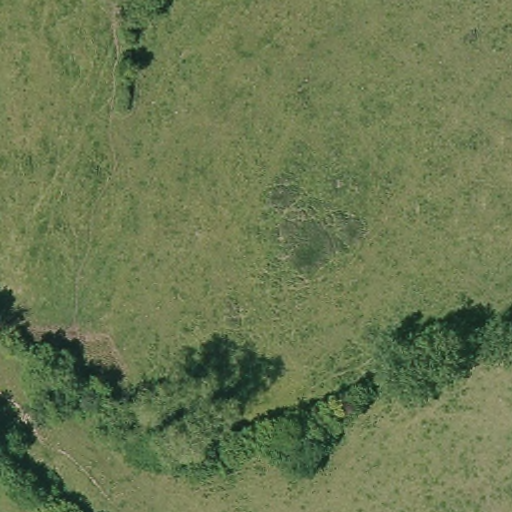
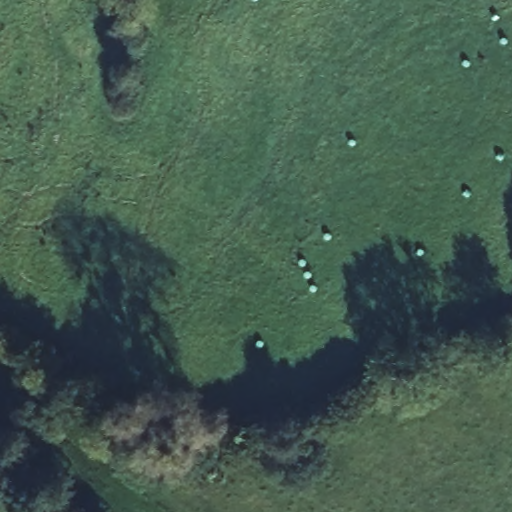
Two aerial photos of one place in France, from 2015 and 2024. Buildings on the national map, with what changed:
[]

